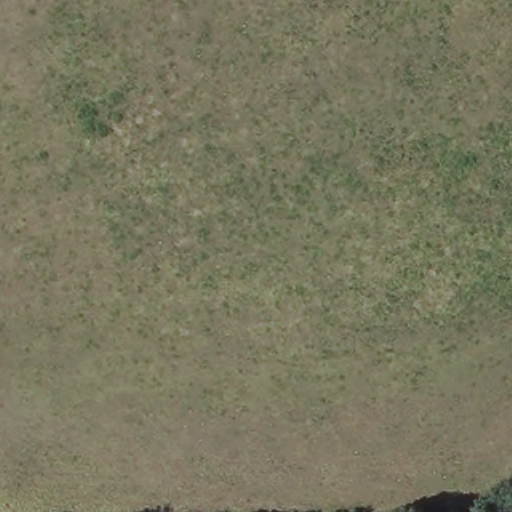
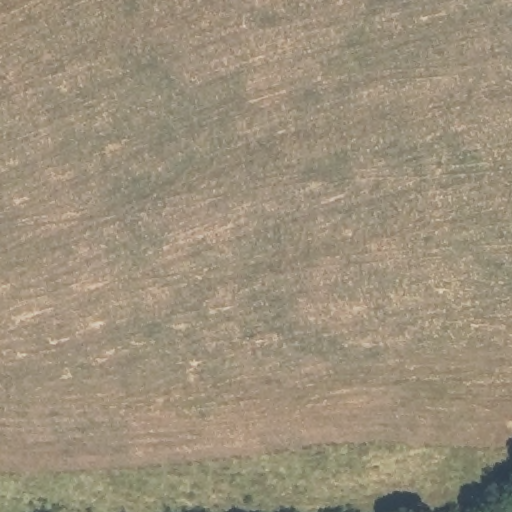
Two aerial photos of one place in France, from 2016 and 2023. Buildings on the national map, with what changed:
[]

